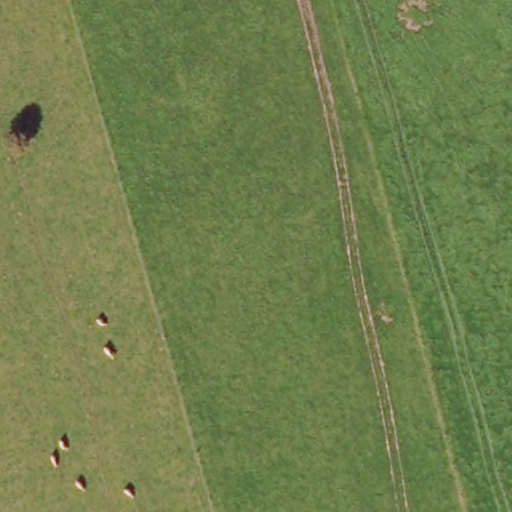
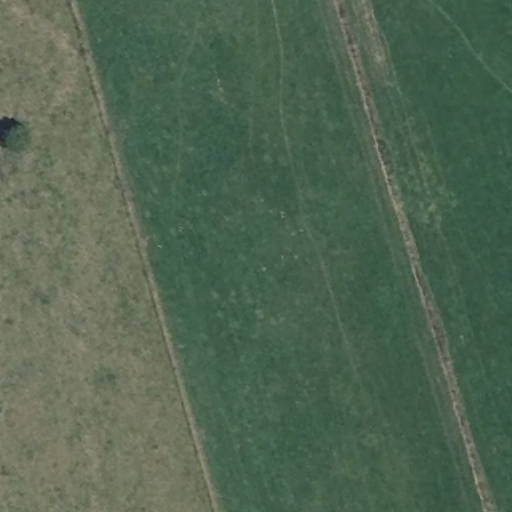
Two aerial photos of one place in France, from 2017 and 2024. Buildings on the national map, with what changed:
[]

